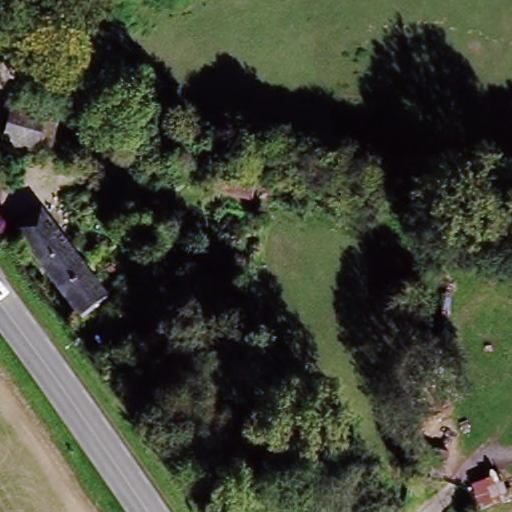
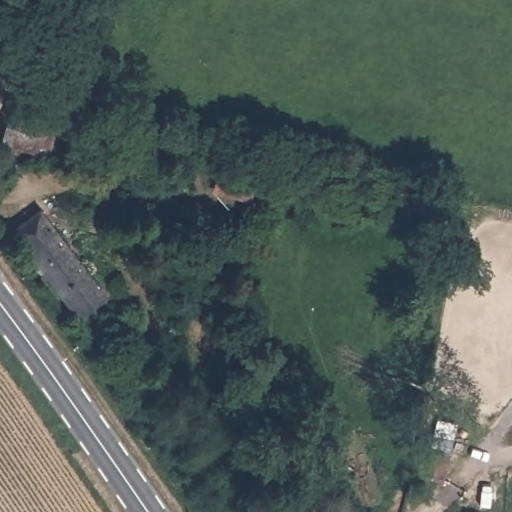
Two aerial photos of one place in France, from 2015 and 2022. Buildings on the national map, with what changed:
unchanged [(16,113),(46,121),(40,148),(8,143),(16,113)]
unchanged [(82,316),(74,305),(33,248),(18,228),(43,211),(57,231),(98,287),(107,299),(82,316)]
unchanged [(418,473),(422,461),(428,443),(451,451),(447,467),(443,482),(418,473)]

